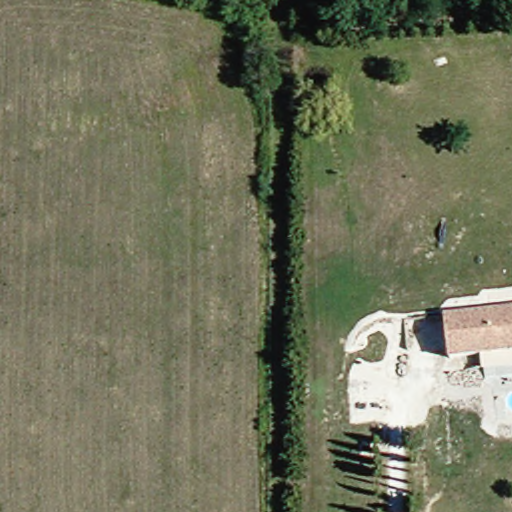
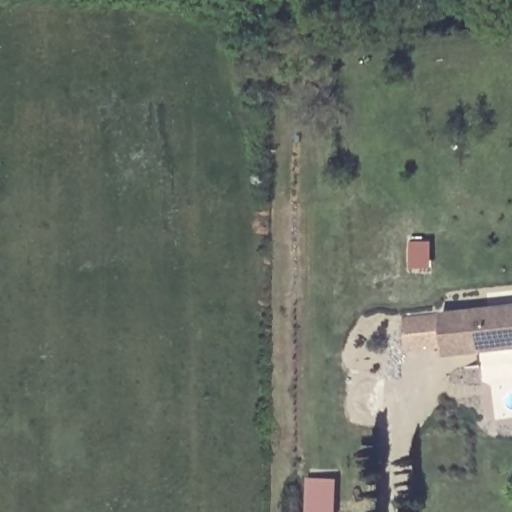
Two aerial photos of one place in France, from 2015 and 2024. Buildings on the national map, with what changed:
unchanged [(445,310),(512,308),(512,349),(480,351),(447,352),(445,310)]
new [(338,512),(308,512),(308,478),(338,479),(338,512)]

